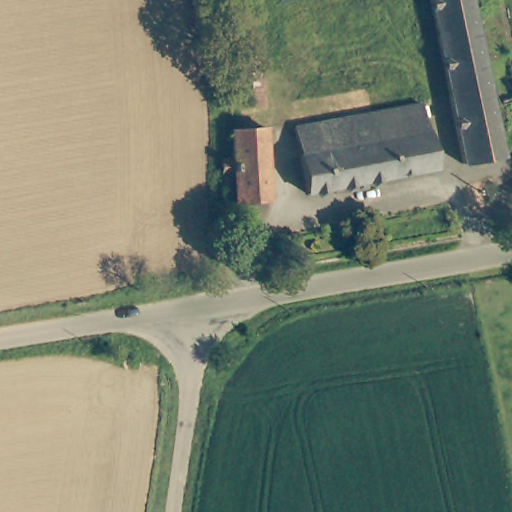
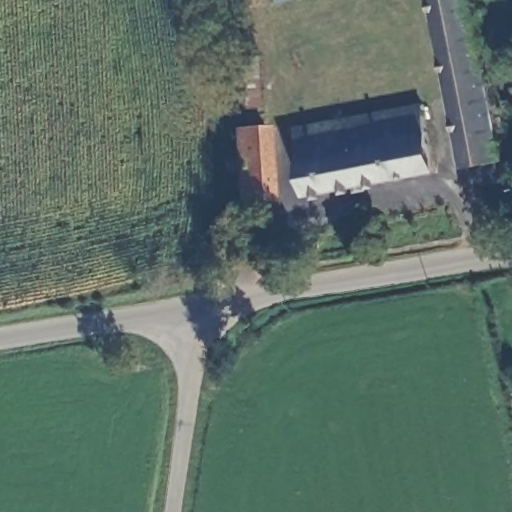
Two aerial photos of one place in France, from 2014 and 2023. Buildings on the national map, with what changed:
unchanged [(285,5),(283,0),(302,0),(285,5)]
unchanged [(497,154),(458,162),(425,0),(468,0),(497,154)]
unchanged [(232,51),(230,8),(253,5),(254,52),(232,51)]
unchanged [(268,108),(246,110),(244,59),(265,58),(268,108)]
unchanged [(433,167),(309,192),(296,127),(421,102),(433,167)]
unchanged [(270,203),(240,205),(239,177),(227,177),(227,157),(237,158),(236,131),(267,129),(270,203)]

